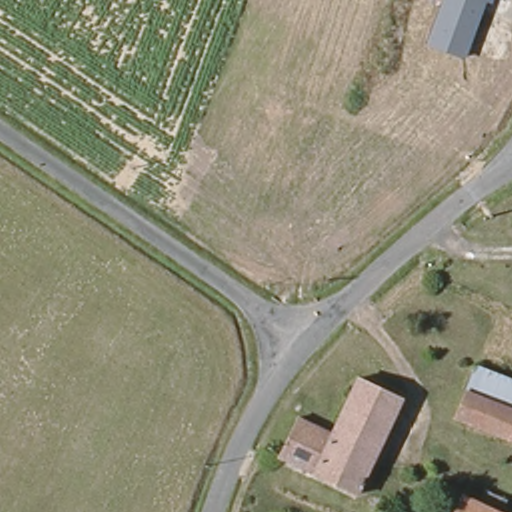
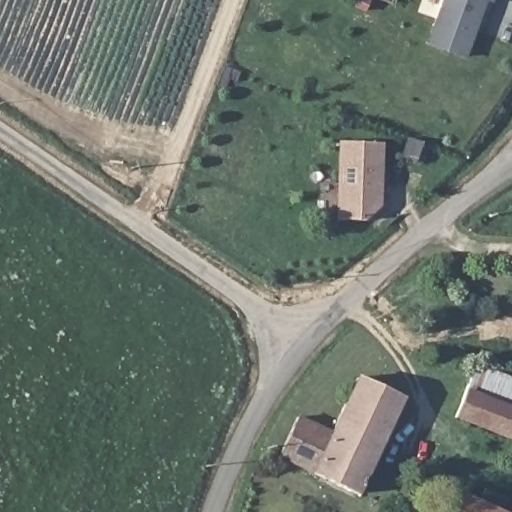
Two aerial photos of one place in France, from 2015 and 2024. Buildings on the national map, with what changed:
unchanged [(465,59),(426,45),(443,0),(493,0),(491,3),(486,2),(465,59)]
new [(365,220),(337,219),(338,142),(383,143),(381,206),(365,220)]
unchanged [(512,410),(471,394),(480,370),(507,382),(512,383),(512,410)]
unchanged [(280,458),(299,419),(333,436),(360,381),(402,401),(360,492),(280,458)]
unchanged [(471,394),(512,410),(512,440),(460,421),(471,394)]
unchanged [(478,509),(485,489),(506,499),(502,512),(457,512),(460,503),(478,509)]

